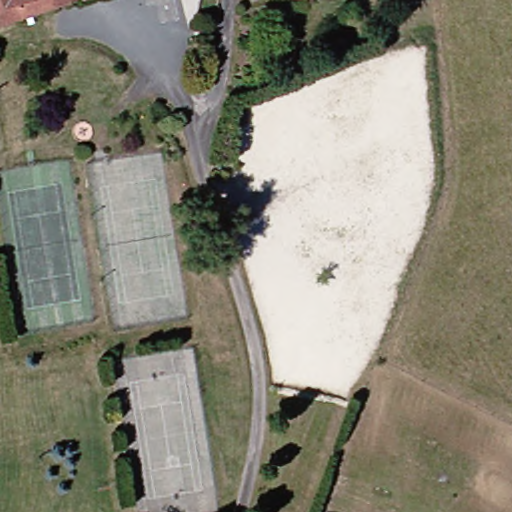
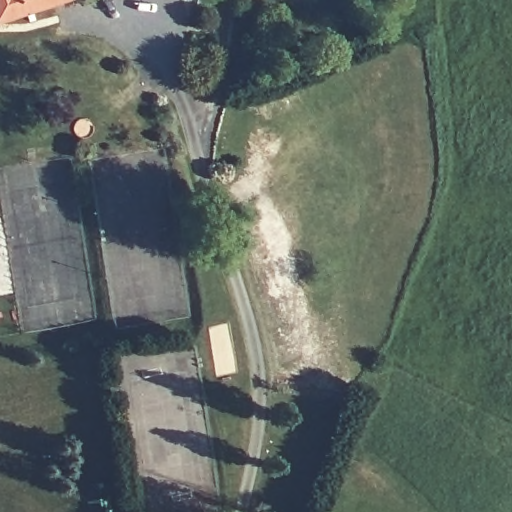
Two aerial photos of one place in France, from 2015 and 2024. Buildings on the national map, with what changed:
unchanged [(0,23),(0,0),(75,0),(75,1),(0,23)]

